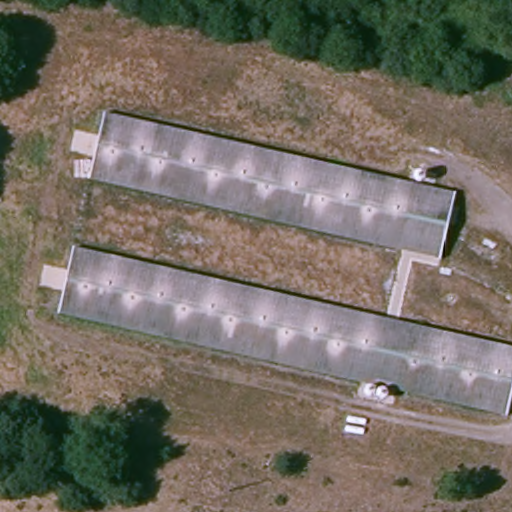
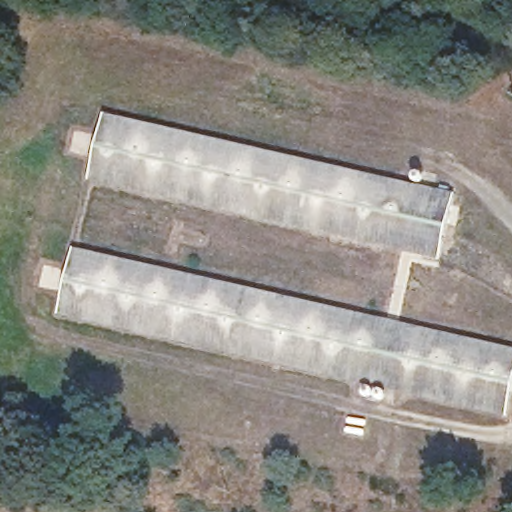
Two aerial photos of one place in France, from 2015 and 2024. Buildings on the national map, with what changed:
unchanged [(446,262),(191,205),(96,184),(110,117),(110,115),(205,136),(461,192),(446,262)]
unchanged [(62,315),(75,251),(172,272),(159,336),(62,315)]
unchanged [(512,345),(512,411),(159,336),(172,272),(512,345)]

